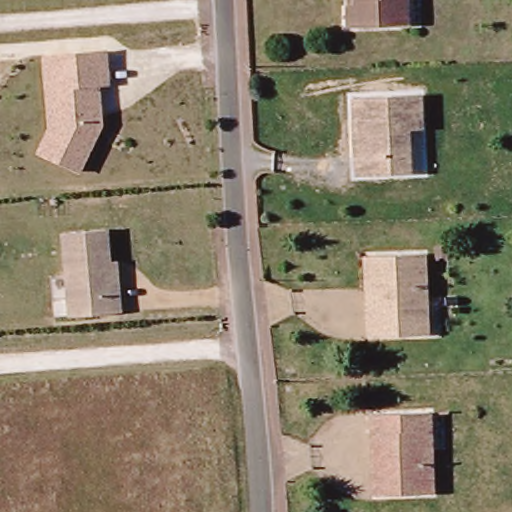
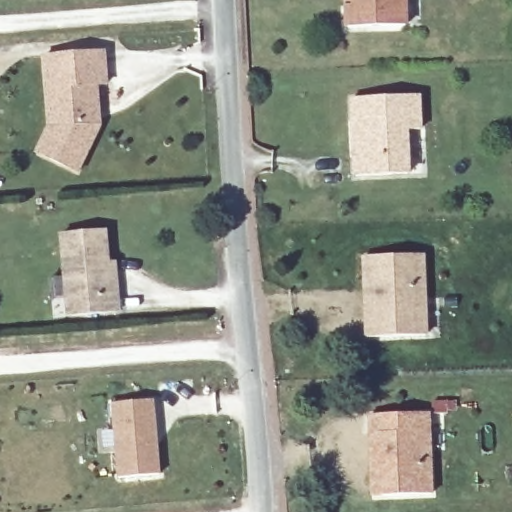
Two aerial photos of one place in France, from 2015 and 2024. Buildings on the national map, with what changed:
unchanged [(402,0),(402,16),(341,20),(341,0),(402,0)]
unchanged [(47,127),(43,51),(106,48),(109,84),(100,85),(102,123),(79,173),(35,151),(47,127)]
unchanged [(348,95),(415,93),(417,129),(403,130),(403,171),(350,173),(349,156),(349,118),(348,95)]
unchanged [(116,311),(66,314),(60,232),(103,229),(105,260),(113,261),(115,293),(116,311)]
unchanged [(383,314),(370,315),(368,261),(418,258),(419,316),(419,336),(386,337),(383,314)]
unchanged [(361,338),(358,262),(368,261),(370,315),(383,314),(386,337),(361,338)]
new [(147,401),(153,476),(113,479),(107,405),(147,401)]
unchanged [(365,415),(383,415),(420,413),(423,493),(377,495),(367,495),(365,415)]

